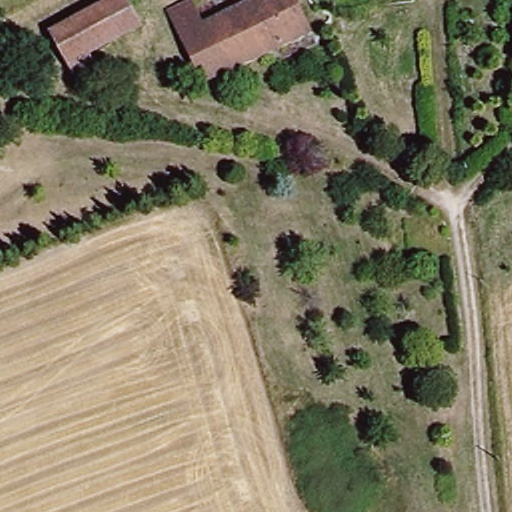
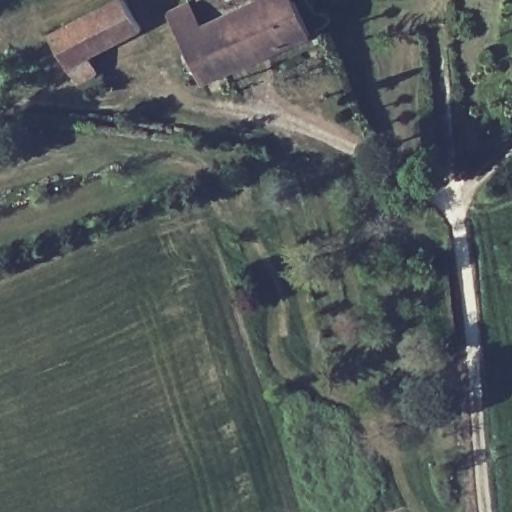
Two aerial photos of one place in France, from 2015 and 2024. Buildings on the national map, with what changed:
unchanged [(77,72),(72,59),(52,24),(98,0),(135,0),(142,14),(92,46),(102,61),(77,72)]
unchanged [(310,27),(204,88),(162,16),(189,0),(294,0),(310,27)]
unchanged [(512,42),(512,57),(510,57),(512,42)]

